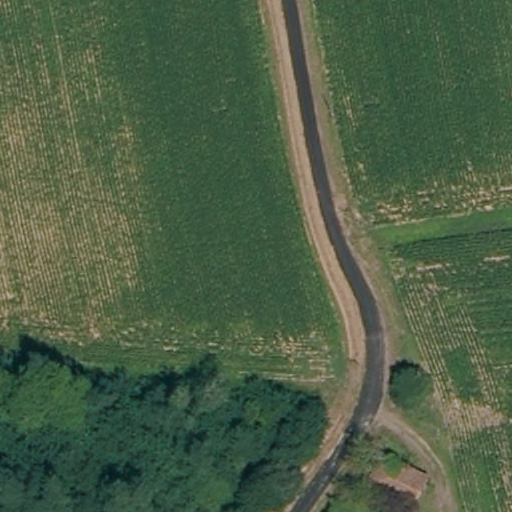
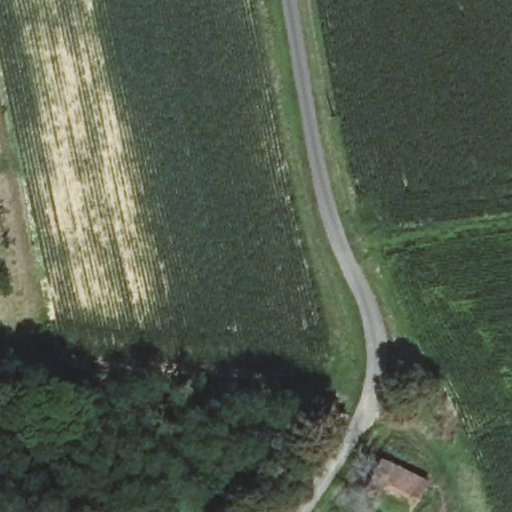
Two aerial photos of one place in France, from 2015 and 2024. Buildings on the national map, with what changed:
unchanged [(407,512),(402,512),(367,490),(385,461),(424,485),(407,512)]

